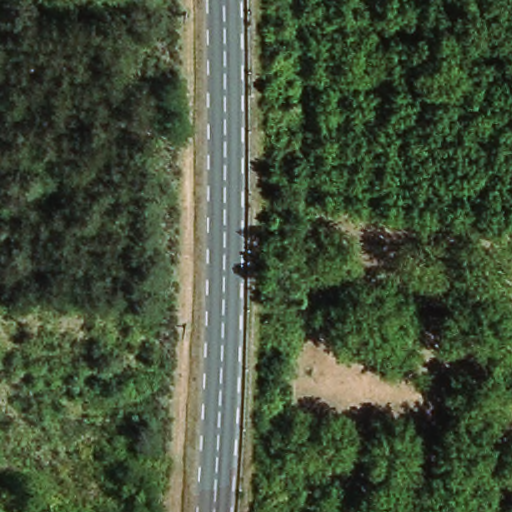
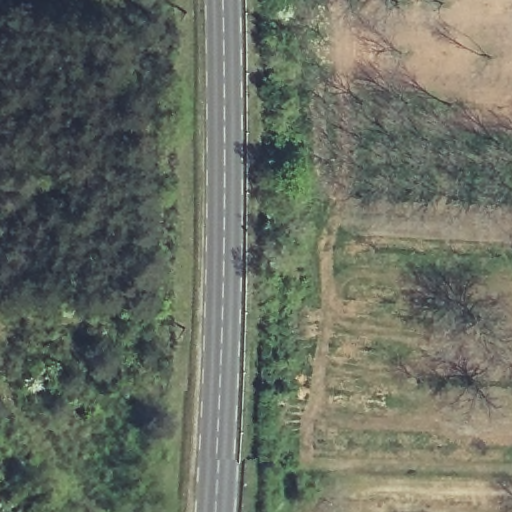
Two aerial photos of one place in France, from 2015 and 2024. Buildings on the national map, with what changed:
unchanged [(0,509),(20,509),(20,512),(0,512),(0,509)]

